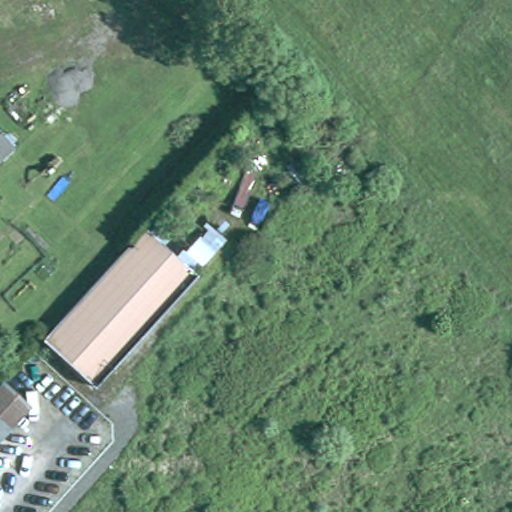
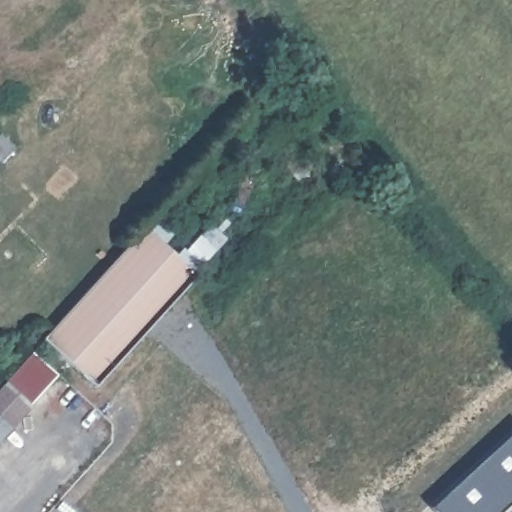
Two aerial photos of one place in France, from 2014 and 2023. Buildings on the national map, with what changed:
unchanged [(124,250),(145,227),(197,274),(95,387),(42,339),(124,250)]
unchanged [(0,391),(27,414),(11,432),(0,443),(0,391)]
new [(512,502),(501,512),(437,512),(432,507),(512,438),(512,502)]

